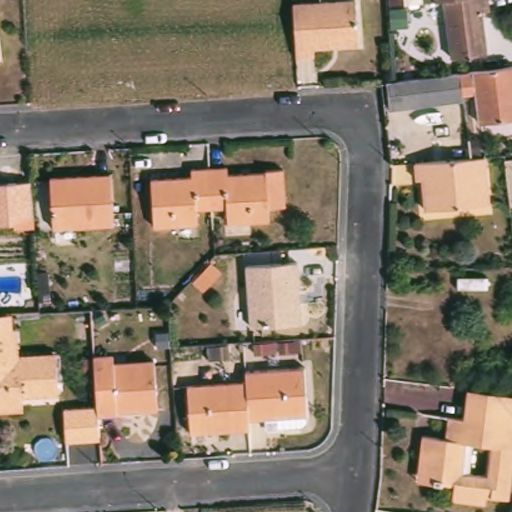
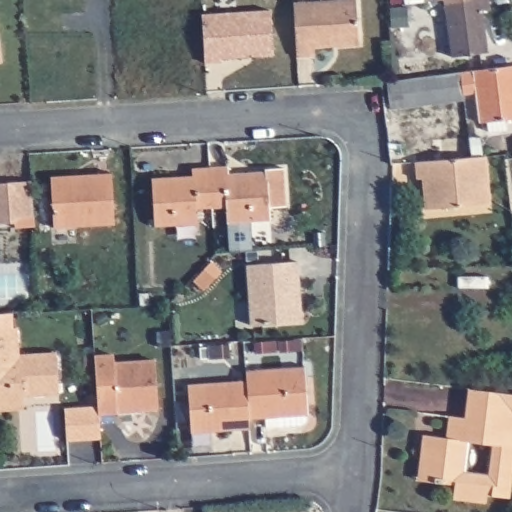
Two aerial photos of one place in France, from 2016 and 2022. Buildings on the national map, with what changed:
unchanged [(488,52),(450,57),(442,1),(401,6),(400,0),(450,0),(489,0),(490,10),(483,11),(488,52)]
unchanged [(359,1),(362,46),(318,49),(318,58),(301,59),(298,5),(359,1)]
new [(270,11),(272,56),(221,60),(221,63),(205,64),(202,15),(270,11)]
unchanged [(0,69),(0,59),(1,69),(0,69)]
unchanged [(482,124),(476,83),(463,85),(462,74),(512,68),(512,120),(482,124)]
unchanged [(393,110),(387,83),(393,82),(462,74),(463,85),(466,100),(393,110)]
unchanged [(490,204),(426,209),(423,179),(417,180),(417,164),(476,159),(486,158),(490,204)]
unchanged [(232,173),(232,180),(270,177),(270,172),(288,171),(290,209),(272,210),(273,221),(232,224),(231,211),(215,212),(213,174),(232,173)]
unchanged [(199,212),(200,225),(157,229),(156,185),(194,182),(193,175),(213,174),(215,212),(199,212)]
unchanged [(50,179),(112,175),(116,225),(52,228),(50,179)]
unchanged [(36,227),(12,234),(12,226),(0,227),(0,184),(31,180),(36,227)]
unchanged [(300,265),(303,324),(255,327),(252,268),(300,265)]
unchanged [(0,331),(15,330),(17,357),(56,355),(59,395),(22,397),(23,410),(0,411),(0,331)]
unchanged [(311,335),(327,333),(336,332),(336,342),(327,343),(312,345),(311,335)]
unchanged [(267,340),(267,351),(252,352),(252,340),(267,340)]
unchanged [(218,342),(219,355),(206,356),(205,343),(218,342)]
unchanged [(112,356),(112,361),(153,360),(156,406),(140,407),(140,411),(117,413),(117,412),(97,412),(97,407),(94,357),(112,356)]
unchanged [(307,370),(309,428),(270,431),(268,420),(251,420),(249,386),(248,373),(307,370)]
unchanged [(191,436),(187,390),(249,386),(251,420),(251,432),(191,436)]
unchanged [(422,456),(425,438),(446,440),(450,418),(466,420),(469,393),(512,398),(512,480),(510,497),(491,495),(489,505),(457,501),(457,490),(437,486),(418,485),(422,456)]
unchanged [(66,441),(64,409),(97,407),(97,412),(100,440),(66,441)]

